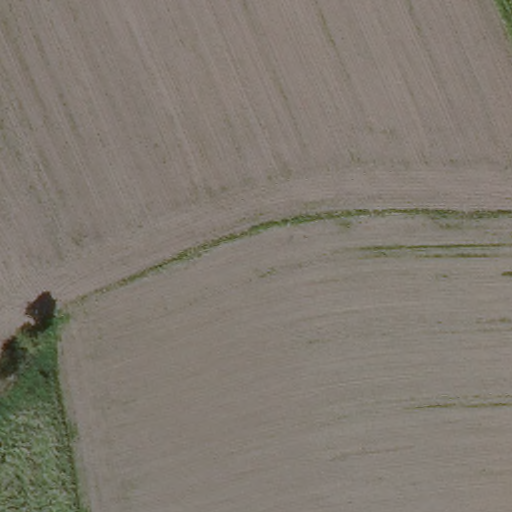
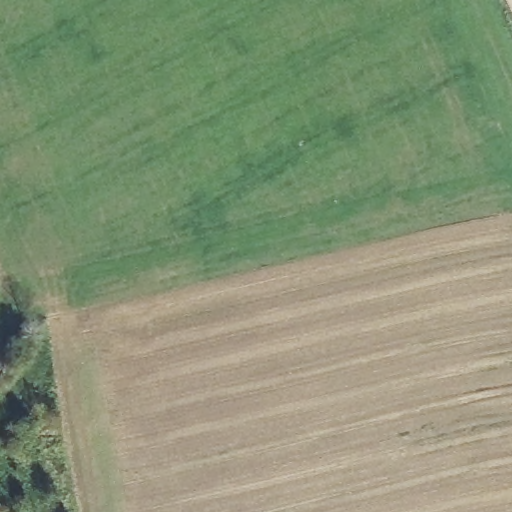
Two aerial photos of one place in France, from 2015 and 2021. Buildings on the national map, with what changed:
[]

